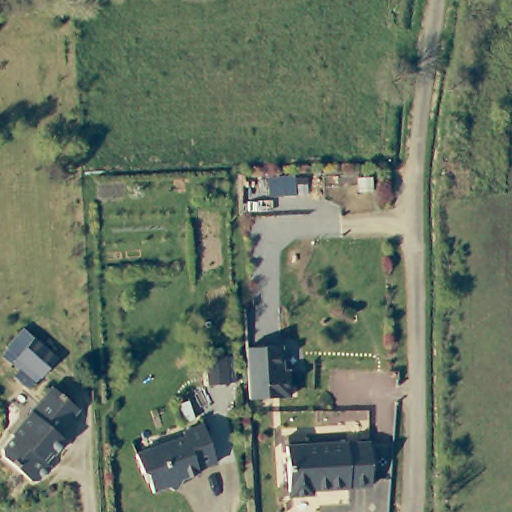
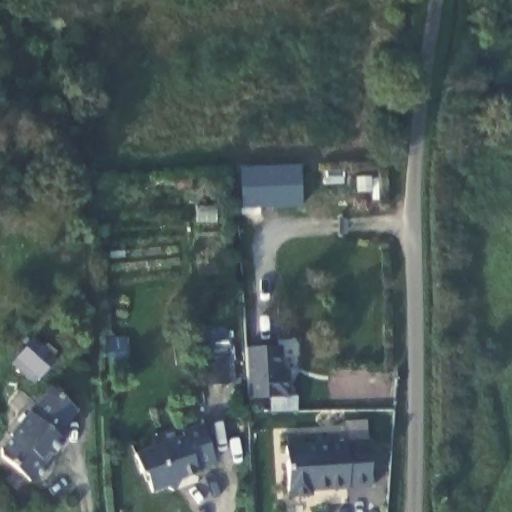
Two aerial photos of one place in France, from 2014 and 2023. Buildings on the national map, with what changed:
new [(301,167),(301,187),(302,200),(275,201),(245,201),(242,169),(274,168),(301,167)]
new [(370,178),(371,191),(357,192),(356,179),(370,178)]
unchanged [(35,332),(61,351),(38,378),(14,359),(35,332)]
unchanged [(273,377),(275,402),(235,404),(234,393),(232,354),(266,352),(267,377),(273,377)]
unchanged [(61,448),(52,454),(47,448),(44,451),(54,465),(40,476),(42,480),(26,480),(1,449),(2,442),(11,437),(12,430),(58,383),(67,394),(84,411),(65,428),(54,439),(61,448)]
unchanged [(194,436),(207,429),(220,454),(177,482),(177,486),(155,488),(134,458),(186,426),(194,436)]
unchanged [(372,482),(313,489),(313,493),(290,494),(287,443),(368,437),(372,482)]

